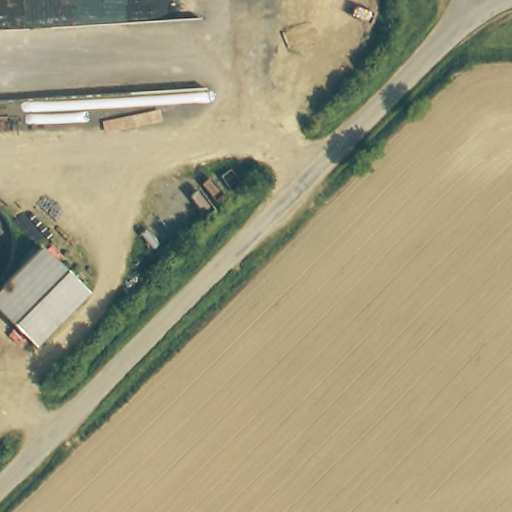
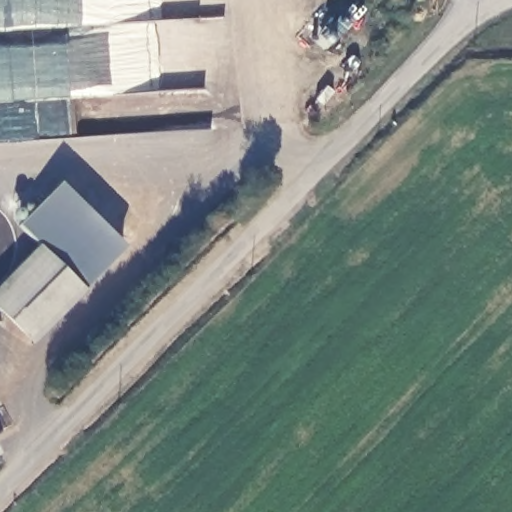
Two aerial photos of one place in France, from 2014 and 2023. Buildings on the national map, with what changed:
new [(39,246),(20,226),(60,185),(125,249),(83,289),(39,246)]
unchanged [(87,293),(35,345),(0,313),(0,288),(39,246),(87,293)]

